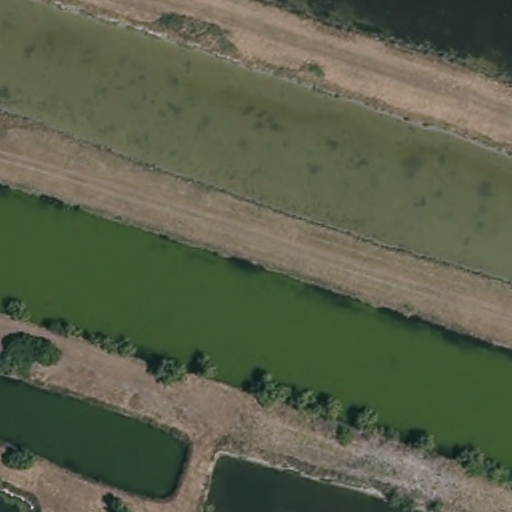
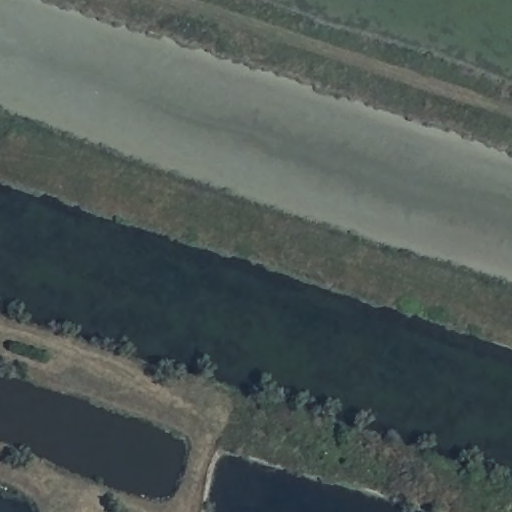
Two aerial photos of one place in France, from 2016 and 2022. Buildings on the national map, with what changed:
[]

